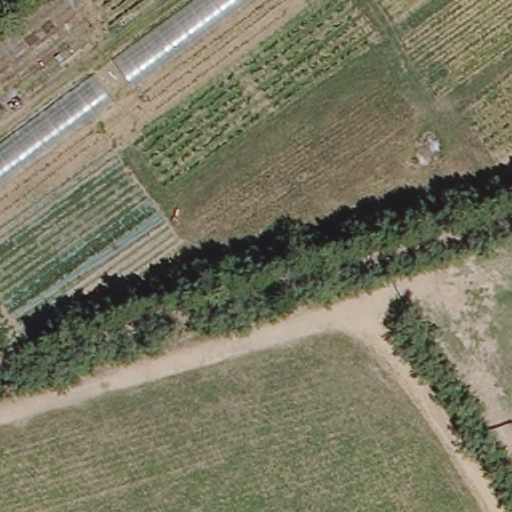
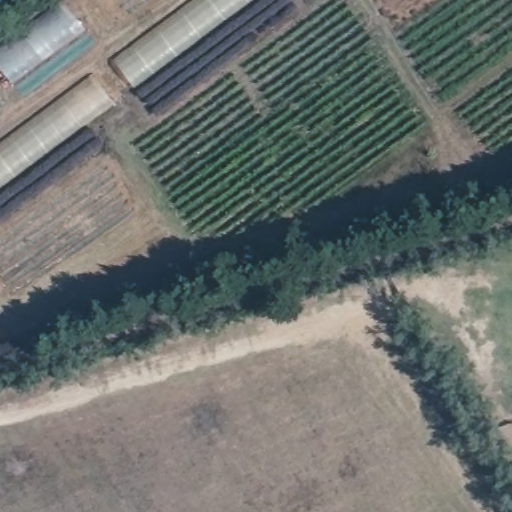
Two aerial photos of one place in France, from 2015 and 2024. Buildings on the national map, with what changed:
unchanged [(245,0),(132,81),(118,62),(201,0),(245,0)]
new [(13,84),(0,68),(0,48),(65,4),(84,32),(13,84)]
unchanged [(111,102),(0,181),(0,148),(93,79),(111,102)]

